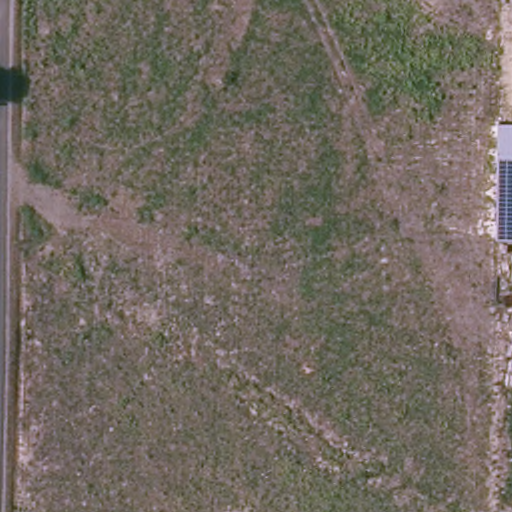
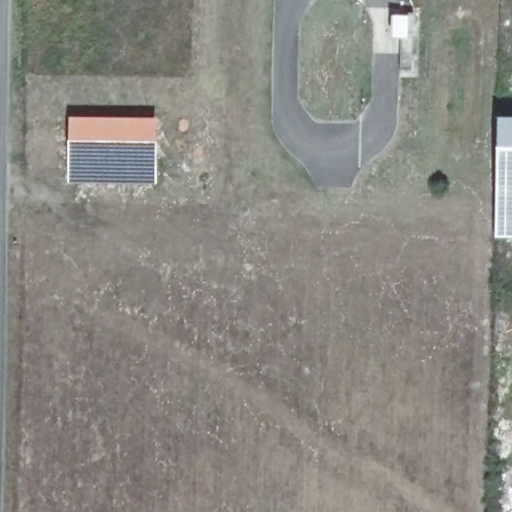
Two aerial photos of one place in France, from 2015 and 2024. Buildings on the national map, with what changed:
new [(68,117),(157,119),(156,185),(67,185),(68,117)]
unchanged [(512,237),(498,237),(500,121),(512,122),(512,237)]

